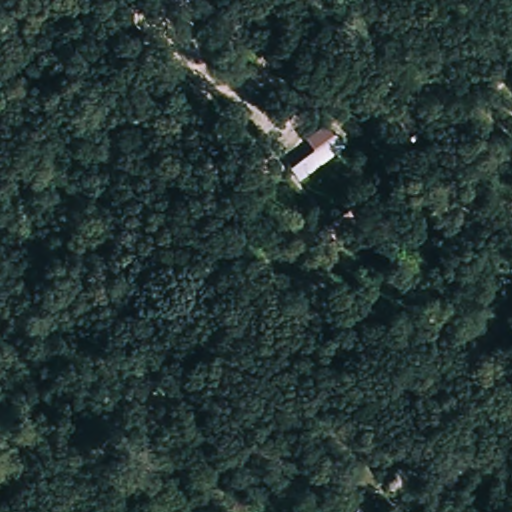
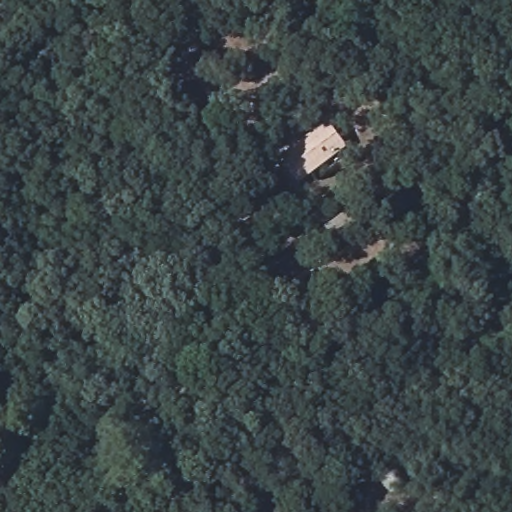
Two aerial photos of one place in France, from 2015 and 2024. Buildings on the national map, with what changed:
unchanged [(421,116),(426,134),(405,141),(399,125),(421,116)]
unchanged [(339,134),(351,150),(307,184),(294,167),(339,134)]
unchanged [(391,470),(395,466),(404,464),(411,467),(412,476),(411,489),(406,496),(402,497),(395,498),(389,494),(385,488),(388,475),(391,470)]

